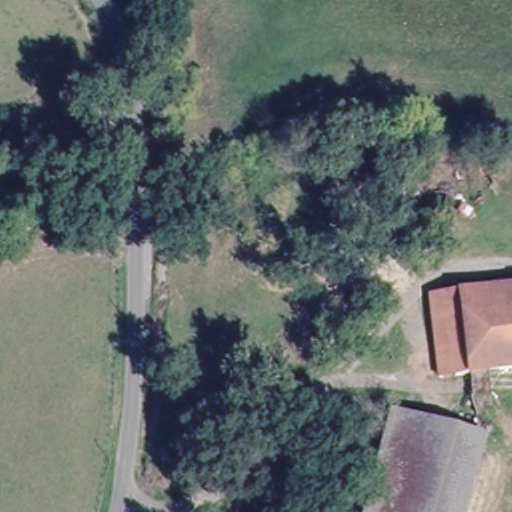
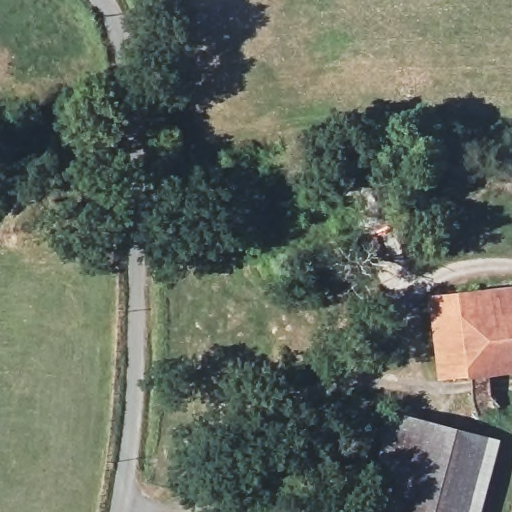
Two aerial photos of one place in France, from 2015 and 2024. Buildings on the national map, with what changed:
unchanged [(512,364),(438,371),(433,288),(512,284),(512,364)]
unchanged [(367,512),(382,433),(389,412),(485,433),(481,452),(470,505),(468,512),(367,512)]

